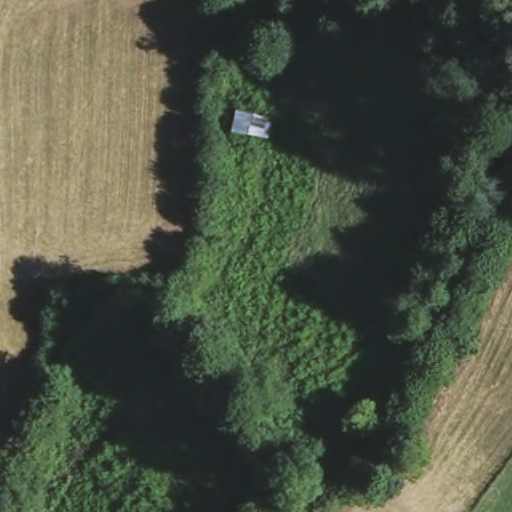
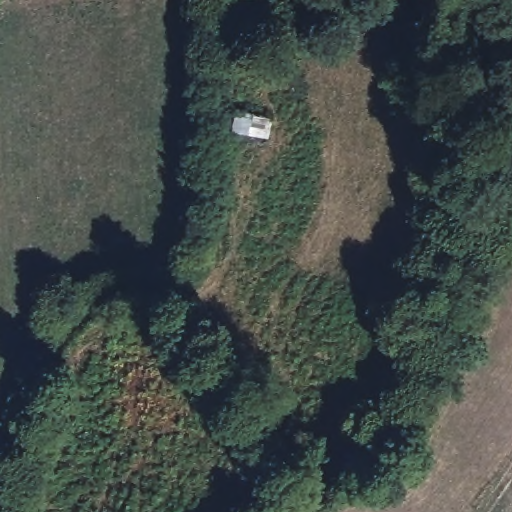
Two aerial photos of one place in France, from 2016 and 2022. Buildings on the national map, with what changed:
unchanged [(274,120),(269,143),(229,136),(234,112),(274,120)]

